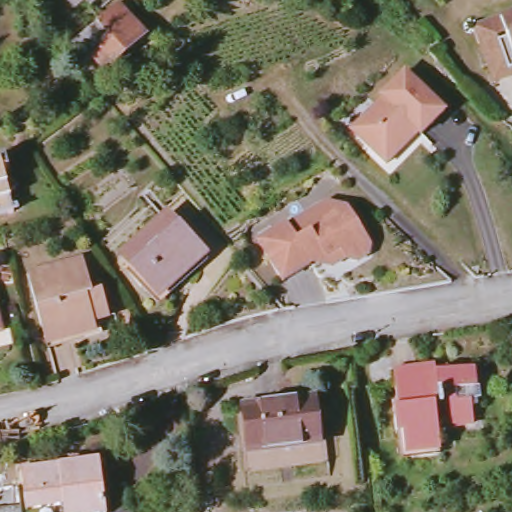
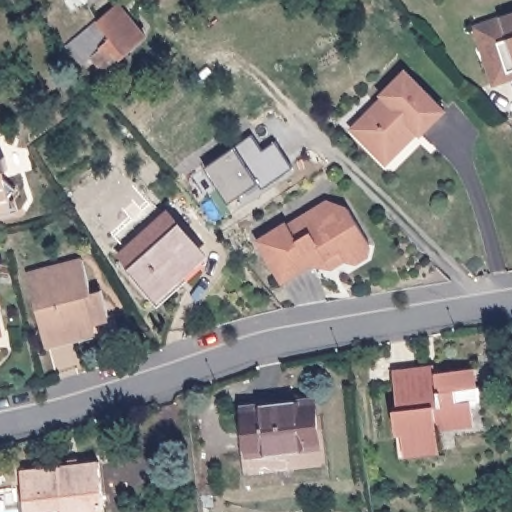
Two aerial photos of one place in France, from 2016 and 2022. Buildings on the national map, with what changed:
unchanged [(148,35),(107,70),(95,56),(87,62),(72,45),(123,4),(148,35)]
unchanged [(498,43),(509,40),(502,20),(512,16),(512,72),(509,73),(498,43)]
unchanged [(371,114),(389,96),(387,94),(411,70),(450,110),(426,134),(420,127),(412,135),(415,139),(391,163),(364,135),(357,128),(371,114)]
new [(289,144),(292,168),(263,189),(261,185),(248,194),(245,191),(229,202),(206,167),(236,147),(252,136),(262,152),(275,142),(289,144)]
unchanged [(8,215),(4,212),(0,217),(0,157),(10,155),(15,167),(9,168),(11,176),(23,185),(17,194),(22,210),(8,215)]
unchanged [(310,262),(281,280),(257,239),(286,221),(288,224),(327,200),(348,207),(370,244),(367,255),(356,261),(344,258),(330,267),(310,262)]
unchanged [(202,255),(155,290),(123,246),(170,211),(202,255)]
unchanged [(95,293),(104,292),(111,317),(84,325),(86,332),(48,342),(31,274),(85,260),(95,293)]
unchanged [(5,332),(0,333),(0,313),(5,332)]
unchanged [(478,391),(459,392),(460,405),(474,403),(477,425),(441,430),(443,445),(426,447),(427,454),(407,456),(405,435),(399,435),(396,403),(401,401),(398,375),(433,371),(434,377),(476,372),(478,391)]
unchanged [(240,448),(246,447),(242,403),(312,394),(320,453),(243,463),(242,456),(240,448)]
unchanged [(28,493),(24,459),(102,450),(108,506),(55,512),(29,512),(28,493)]
unchanged [(28,493),(29,512),(0,512),(0,496),(28,493)]

